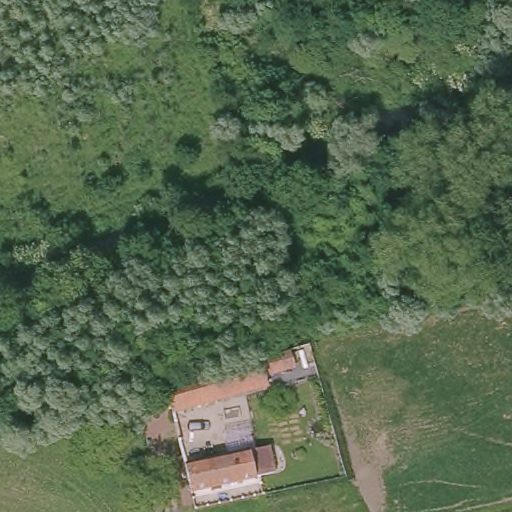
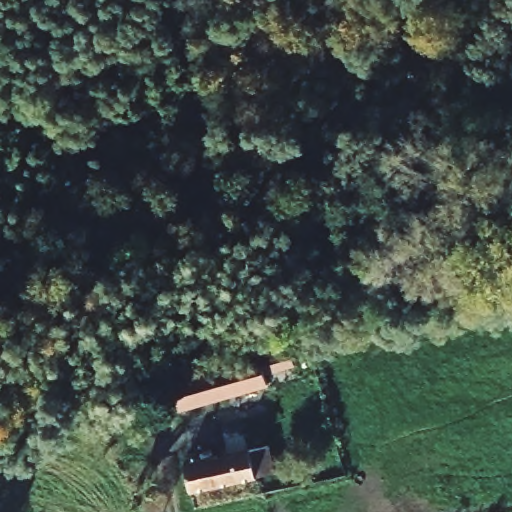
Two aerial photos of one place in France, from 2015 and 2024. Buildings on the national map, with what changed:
unchanged [(290,355),(292,365),(264,373),(267,386),(172,412),(167,388),(290,355)]
unchanged [(265,450),(270,473),(250,477),(251,482),(184,498),(177,469),(265,450)]

